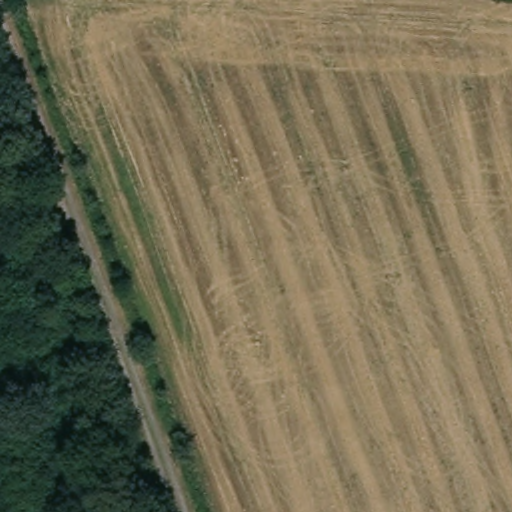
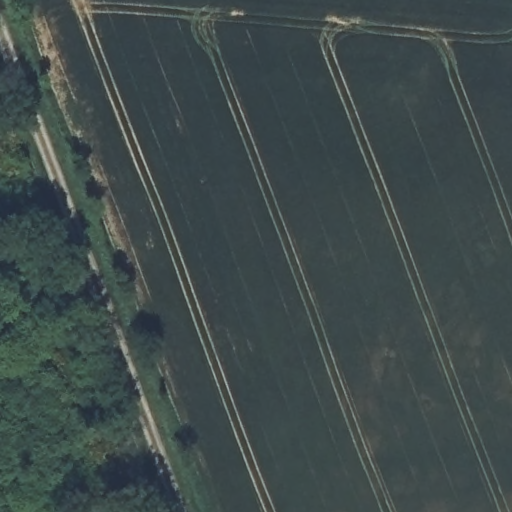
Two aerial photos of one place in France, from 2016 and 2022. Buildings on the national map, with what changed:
[]

